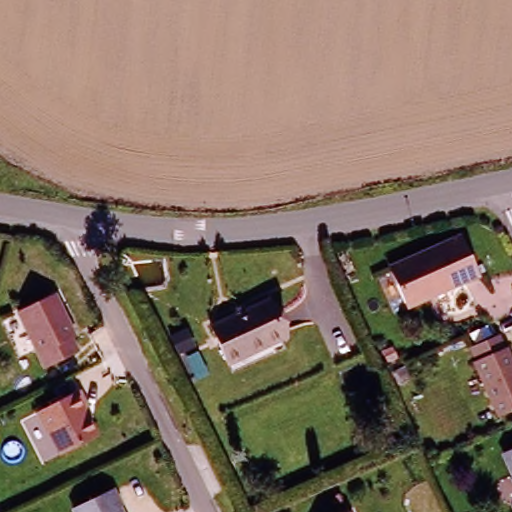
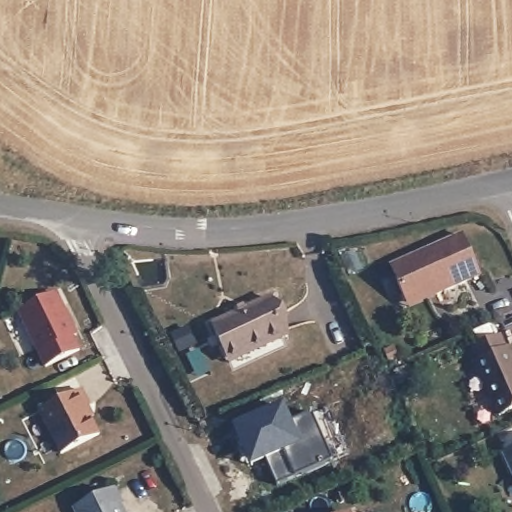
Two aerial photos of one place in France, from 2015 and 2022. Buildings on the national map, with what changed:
unchanged [(405,301),(390,265),(460,234),(478,275),(434,295),(407,306),(405,301)]
unchanged [(57,295),(62,307),(75,336),(72,338),(78,352),(44,367),(18,312),(50,298),(57,295)]
unchanged [(268,296),(286,336),(232,362),(212,322),(268,296)]
unchanged [(192,326),(210,377),(192,384),(170,334),(192,326)]
unchanged [(475,360),(477,359),(471,346),(498,333),(505,347),(507,346),(512,358),(512,406),(497,413),(475,360)]
unchanged [(80,387),(87,402),(83,404),(96,432),(58,450),(38,407),(80,387)]
new [(282,411),(289,428),(311,418),(332,466),(277,490),(265,463),(270,461),(265,450),(245,458),(235,433),(282,411)]
unchanged [(512,469),(505,452),(512,449),(512,469)]
unchanged [(117,503),(113,505),(117,512),(76,512),(72,506),(110,488),(117,503)]

